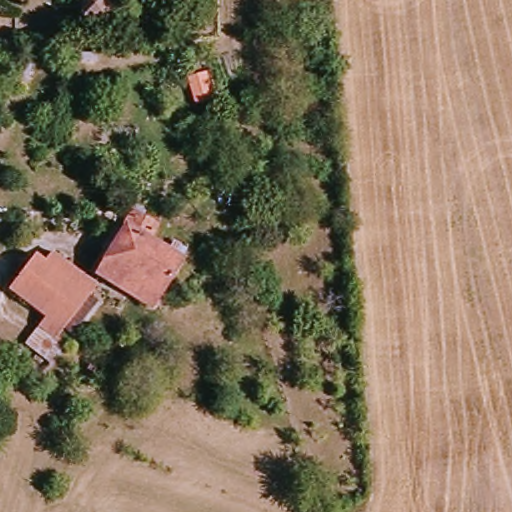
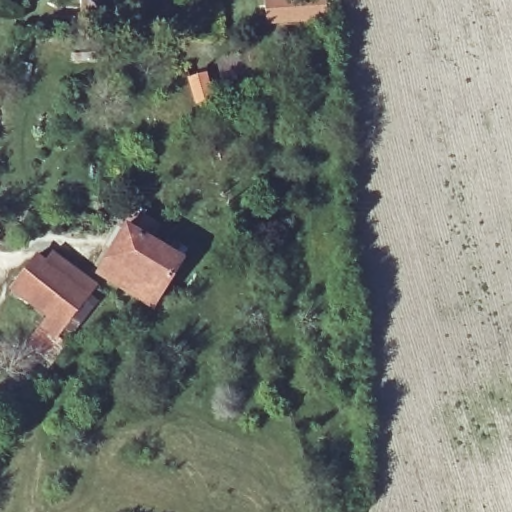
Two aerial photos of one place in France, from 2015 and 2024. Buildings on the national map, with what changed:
unchanged [(106,21),(81,20),(81,0),(107,0),(106,21)]
new [(327,2),(329,21),(266,25),(265,0),(320,0),(327,2)]
unchanged [(163,232),(156,243),(188,262),(157,313),(106,282),(143,220),(163,232)]
unchanged [(57,253),(101,286),(95,294),(66,335),(76,342),(61,365),(33,346),(53,317),(17,293),(43,255),(51,261),(57,253)]

